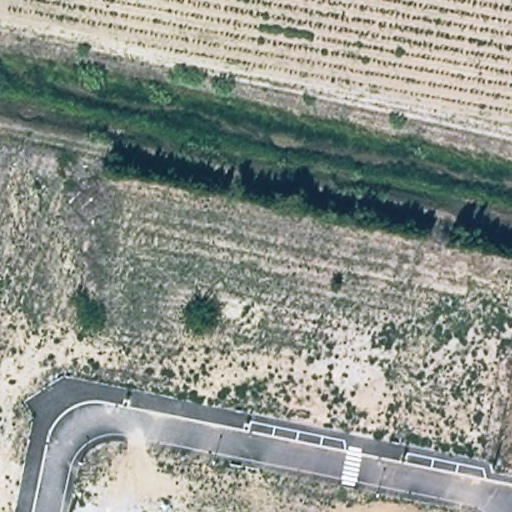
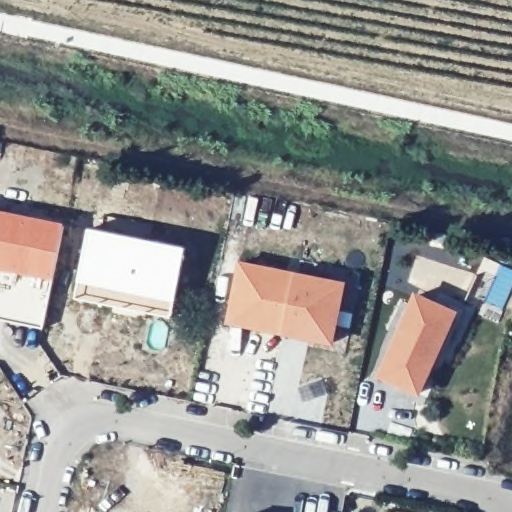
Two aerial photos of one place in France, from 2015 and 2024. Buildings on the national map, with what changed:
new [(35,280),(0,272),(0,210),(66,223),(53,282),(44,328),(30,325),(39,288),(34,287),(35,280)]
new [(90,229),(186,249),(174,301),(172,318),(76,298),(80,282),(90,229)]
new [(331,345),(227,323),(239,261),(344,283),(331,345)]
new [(420,397),(376,376),(415,291),(459,311),(420,397)]

